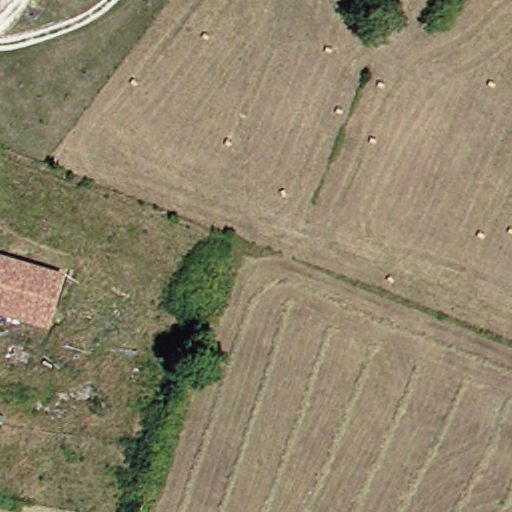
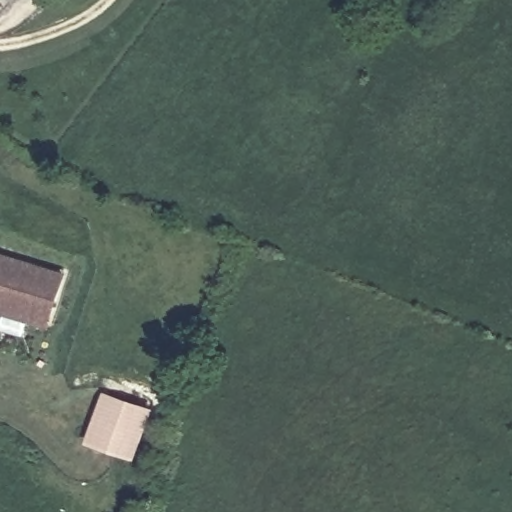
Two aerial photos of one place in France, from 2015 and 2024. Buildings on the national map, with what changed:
unchanged [(0,259),(59,276),(46,320),(0,306),(0,259)]
new [(104,390),(153,408),(135,460),(85,441),(104,390)]

